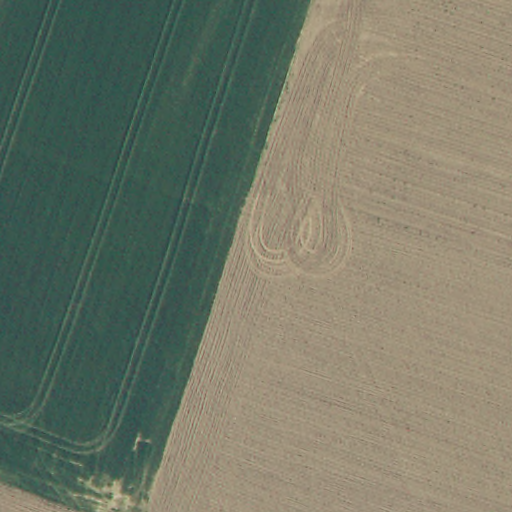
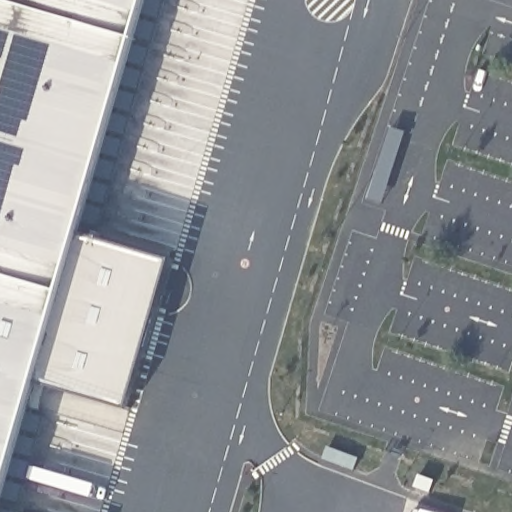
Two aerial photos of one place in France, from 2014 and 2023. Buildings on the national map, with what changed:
new [(172,261),(128,410),(35,382),(0,503),(0,0),(147,0),(79,233),(172,261)]
new [(0,511),(5,512),(0,512),(0,511)]

